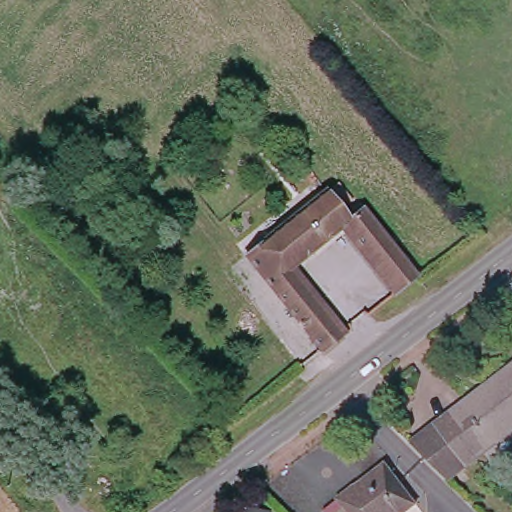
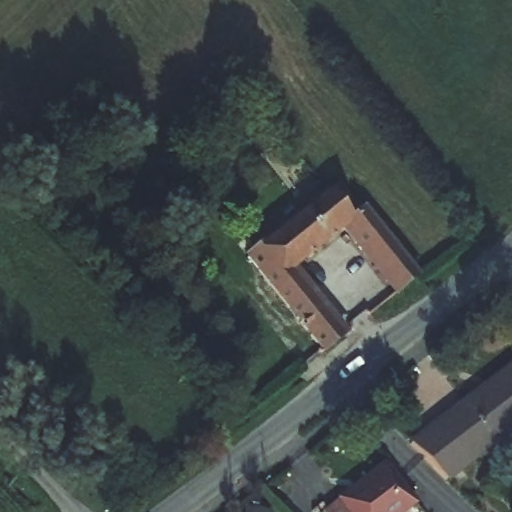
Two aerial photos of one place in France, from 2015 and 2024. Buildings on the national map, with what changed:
unchanged [(321,357),(245,260),(328,192),(350,215),(366,204),(425,279),(391,304),(341,239),(302,269),(351,334),(321,357)]
unchanged [(470,462),(446,480),(441,475),(410,444),(434,426),(448,415),(512,366),(512,429),(483,452),(470,462)]
unchanged [(322,511),(385,464),(391,472),(415,504),(404,512),(324,512),(322,511)]

